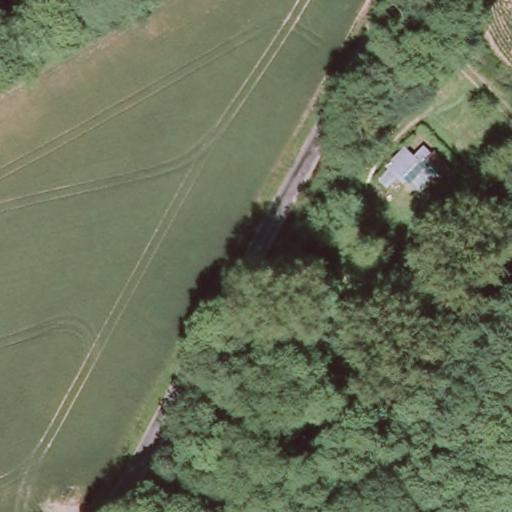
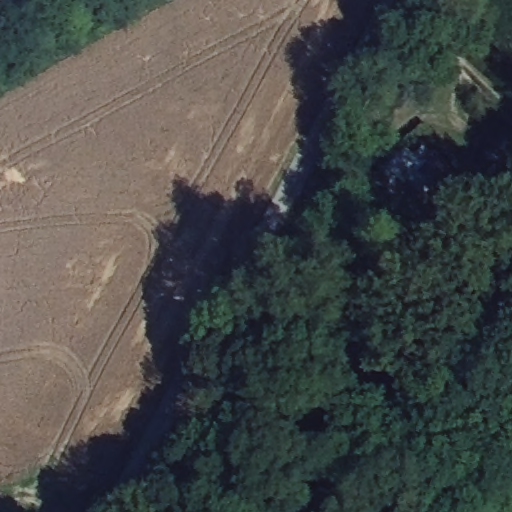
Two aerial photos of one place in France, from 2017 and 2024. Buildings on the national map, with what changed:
unchanged [(417,135),(450,169),(417,198),(383,171),(417,135)]

